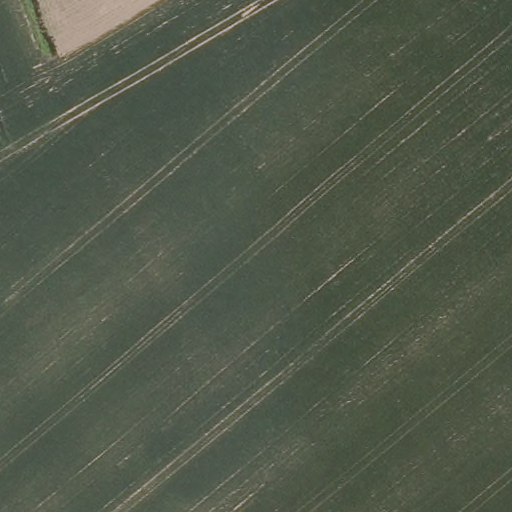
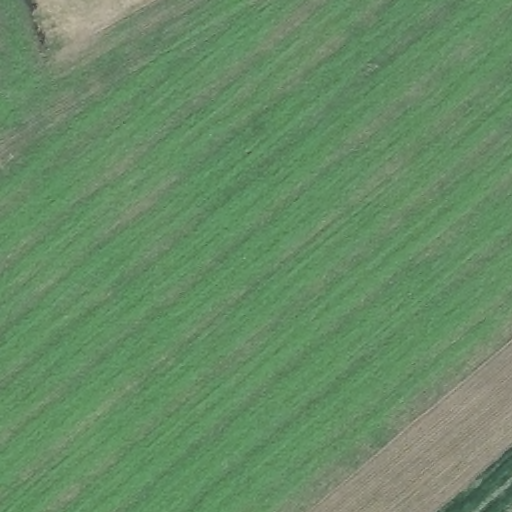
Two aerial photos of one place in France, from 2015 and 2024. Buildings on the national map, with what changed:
[]

